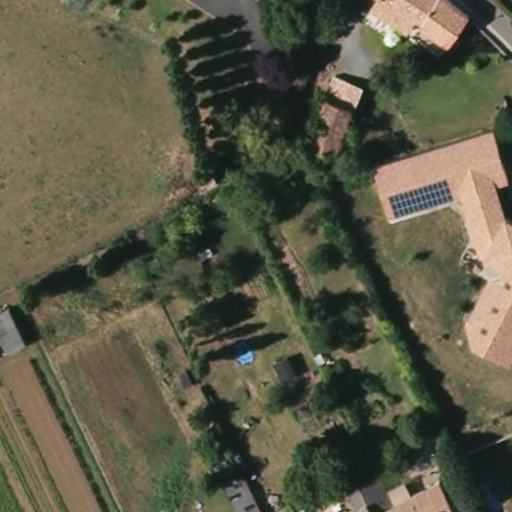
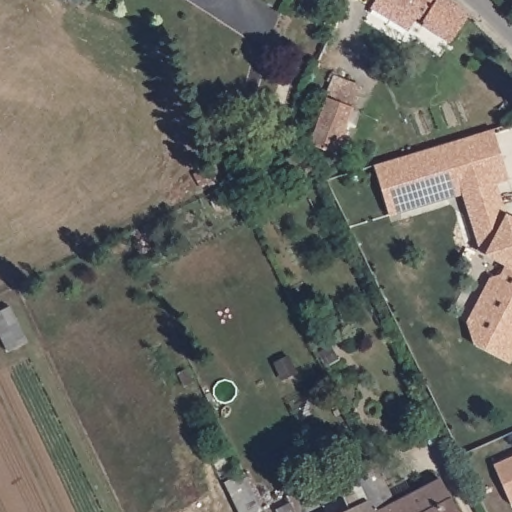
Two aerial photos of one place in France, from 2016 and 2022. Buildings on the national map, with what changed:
unchanged [(449,49),(422,30),(424,28),(380,0),(445,0),(469,20),(449,49)]
unchanged [(337,19),(335,28),(324,25),(326,16),(337,19)]
unchanged [(309,150),(326,103),(334,80),(360,91),(352,112),(335,160),(309,150)]
unchanged [(489,278),(500,275),(503,267),(484,257),(463,195),(389,217),(375,164),(494,130),(508,180),(495,184),(507,217),(512,219),(512,362),(511,364),(474,347),(466,320),(489,278)]
unchanged [(26,342),(8,352),(0,336),(0,311),(9,307),(26,342)]
unchanged [(295,371),(280,377),(273,363),(288,357),(295,371)]
new [(512,456),(512,504),(511,504),(492,465),(512,456)]
unchanged [(362,490),(352,467),(366,461),(372,458),(392,503),(375,512),(373,512),(362,490)]
unchanged [(261,512),(238,512),(223,482),(243,473),(261,512)]
unchanged [(440,479),(458,512),(375,512),(392,503),(440,479)]
unchanged [(353,507),(348,496),(362,490),(373,512),(344,512),(353,507)]
unchanged [(295,512),(276,512),(275,511),(290,503),(295,512)]

